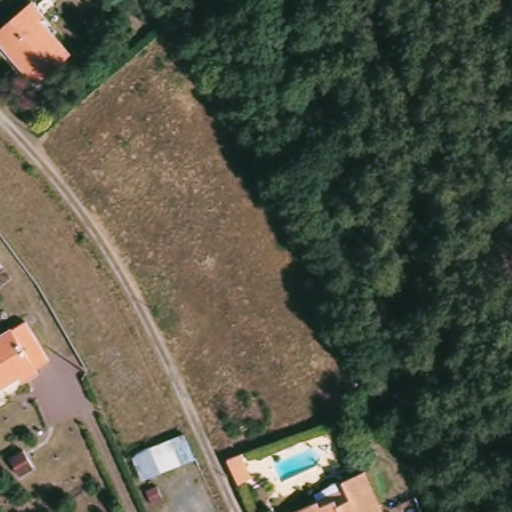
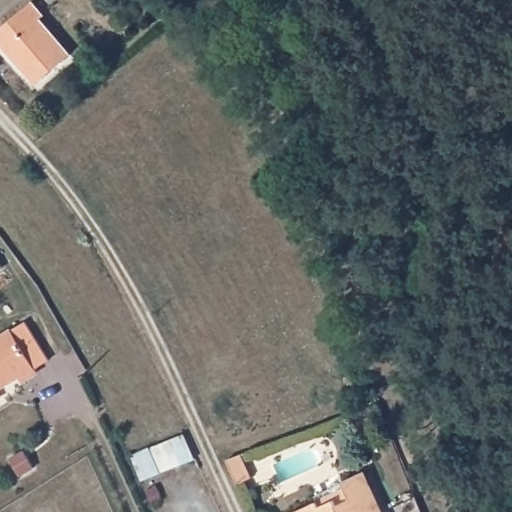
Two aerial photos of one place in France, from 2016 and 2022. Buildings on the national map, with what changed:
unchanged [(0,48),(0,26),(27,3),(39,17),(35,20),(65,55),(30,84),(0,48)]
unchanged [(0,269),(0,266),(1,268),(0,269)]
unchanged [(30,374),(17,382),(14,377),(0,385),(0,336),(7,332),(9,334),(21,325),(43,361),(28,369),(30,374)]
unchanged [(137,485),(126,457),(182,436),(194,464),(137,485)]
unchanged [(250,465),(257,479),(240,487),(234,473),(250,465)]
unchanged [(311,497),(324,491),(325,486),(332,483),(336,485),(340,484),(338,481),(358,473),(377,512),(291,512),(313,502),(311,497)]

